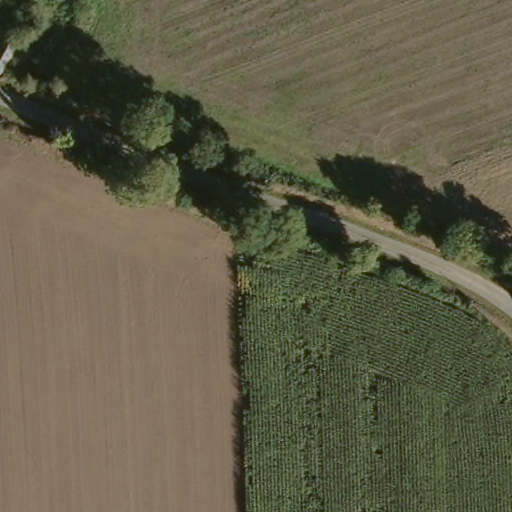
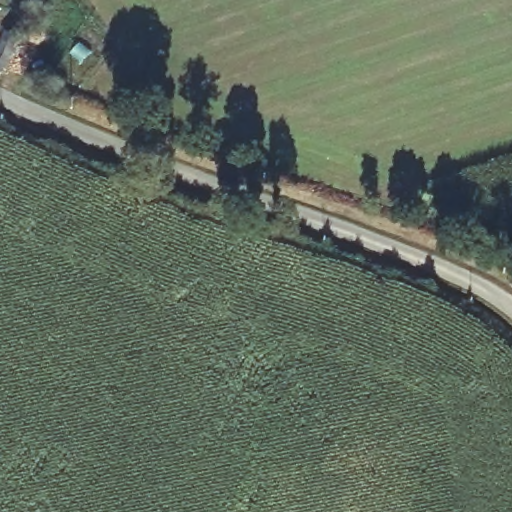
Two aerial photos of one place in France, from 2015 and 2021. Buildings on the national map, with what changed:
unchanged [(6,39),(20,47),(0,83),(0,50),(6,39)]

